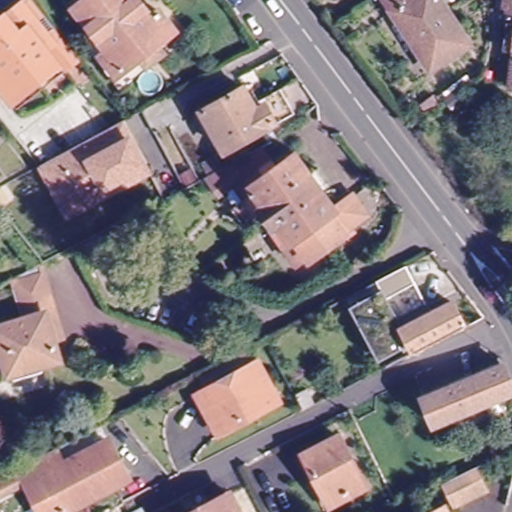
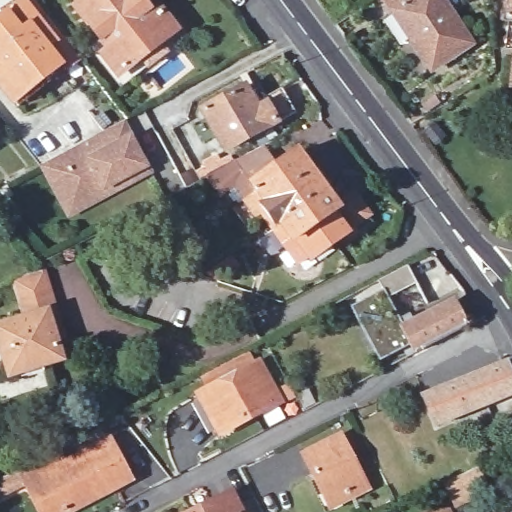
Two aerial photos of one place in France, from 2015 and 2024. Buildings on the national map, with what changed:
unchanged [(171,29),(115,73),(100,55),(107,50),(74,9),(86,0),(140,0),(152,14),(157,10),(171,29)]
unchanged [(430,74),(385,0),(438,0),(469,51),(430,74)]
unchanged [(501,0),(512,0),(512,17),(499,16),(501,0)]
unchanged [(74,62),(57,75),(53,70),(8,106),(0,95),(0,49),(14,38),(2,23),(26,4),(32,10),(39,19),(74,62)]
unchanged [(511,71),(512,61),(512,88),(509,88),(511,71)]
unchanged [(240,90),(250,109),(274,96),(285,116),(221,151),(200,112),(240,90)]
unchanged [(118,124),(142,169),(101,192),(97,184),(76,196),(56,159),(118,124)]
unchanged [(296,159),(340,215),(354,204),(367,221),(302,271),(288,253),(294,249),(281,232),(278,234),(266,218),(257,224),(243,208),(256,198),(244,183),(222,199),(208,181),(201,172),(216,164),(222,174),(259,154),(275,175),(296,159)]
unchanged [(146,175),(66,219),(39,169),(56,159),(76,196),(97,184),(101,192),(142,169),(146,175)]
unchanged [(117,224),(124,238),(109,245),(106,239),(101,243),(97,235),(117,224)]
unchanged [(389,297),(414,284),(410,274),(439,259),(448,277),(421,290),(432,312),(436,310),(440,319),(476,300),(489,324),(437,351),(433,342),(417,351),(410,354),(382,300),(389,297)]
unchanged [(44,342),(50,360),(8,373),(0,346),(0,326),(17,320),(4,279),(7,277),(32,264),(40,289),(44,304),(55,338),(44,342)]
unchanged [(512,397),(434,427),(422,399),(503,367),(512,388),(512,397)]
unchanged [(256,370),(275,406),(216,436),(197,401),(256,370)]
unchanged [(340,439),(366,489),(331,507),(305,458),(340,439)]
unchanged [(25,491),(17,475),(51,458),(59,473),(105,449),(124,485),(72,512),(36,512),(25,491)]
unchanged [(474,471),(485,494),(455,509),(443,486),(474,471)]
unchanged [(232,494),(241,512),(199,512),(232,494)]

